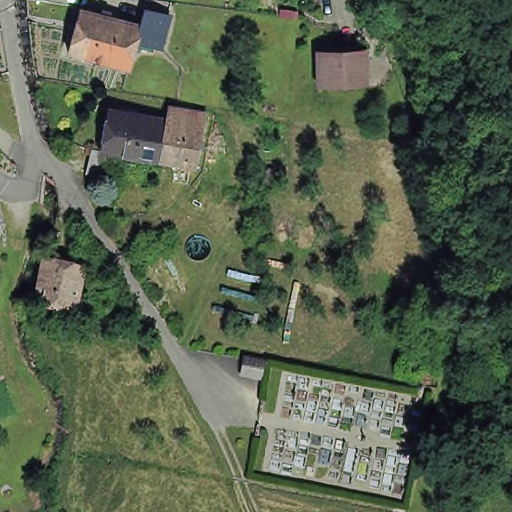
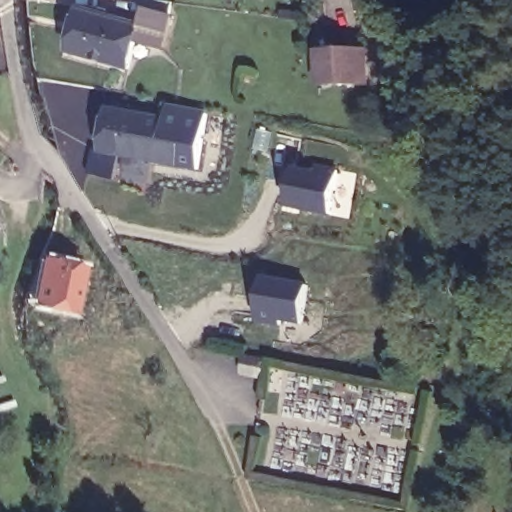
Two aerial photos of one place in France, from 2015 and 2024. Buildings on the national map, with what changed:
unchanged [(68,54),(81,10),(142,27),(147,12),(170,19),(160,51),(137,45),(128,71),(68,54)]
unchanged [(320,85),(318,57),(358,56),(359,84),(320,85)]
unchanged [(87,171),(92,146),(101,147),(108,106),(166,117),(169,104),(208,111),(197,166),(117,151),(112,176),(87,171)]
new [(297,170),(338,177),(331,215),(290,206),(297,170)]
unchanged [(84,276),(75,320),(35,311),(46,266),(84,276)]
new [(310,283),(303,324),(284,321),(283,326),(259,321),(266,277),(310,283)]
unchanged [(241,377),(245,359),(265,363),(262,381),(241,377)]

